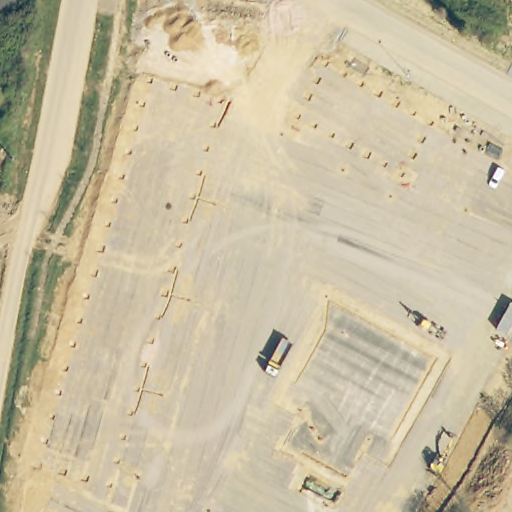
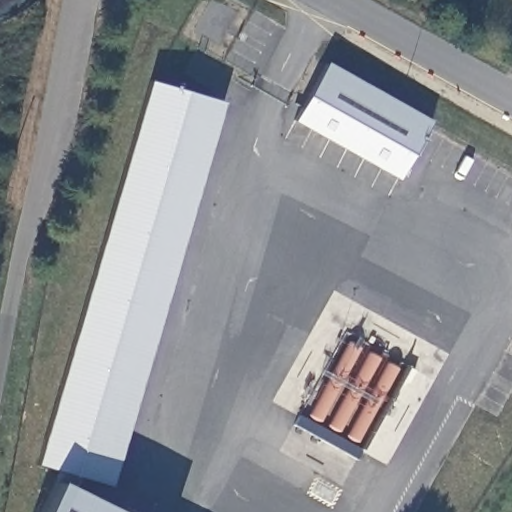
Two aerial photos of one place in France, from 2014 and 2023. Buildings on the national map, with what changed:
unchanged [(398,180),(292,120),(326,61),(431,120),(398,180)]
new [(35,463),(147,80),(222,101),(110,485),(35,463)]
new [(55,480),(121,512),(39,512),(55,480)]

